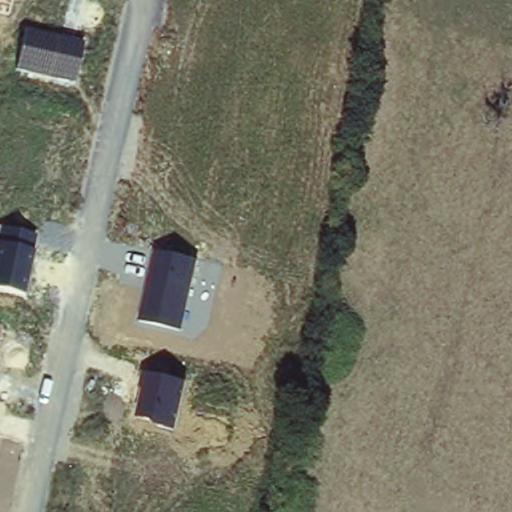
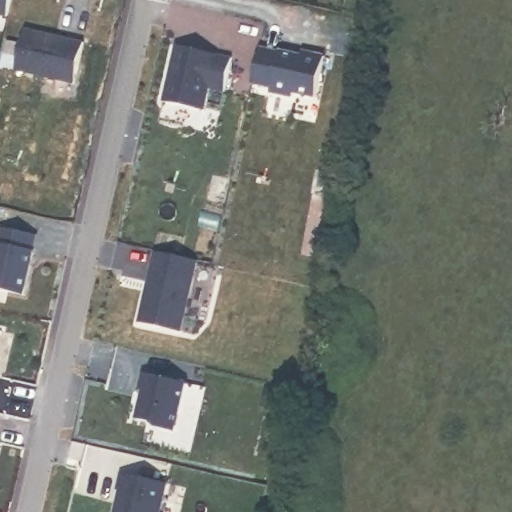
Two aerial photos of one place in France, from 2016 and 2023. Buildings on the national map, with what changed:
unchanged [(0,14),(0,0),(11,0),(9,16),(0,14)]
unchanged [(73,82),(16,69),(23,29),(83,40),(73,82)]
new [(176,44),(232,56),(224,91),(210,88),(205,109),(163,100),(176,44)]
new [(260,46),(280,51),(280,50),(302,54),(303,50),(325,55),(316,95),(294,90),(293,95),(271,90),(272,85),(252,81),(260,46)]
unchanged [(0,289),(0,229),(0,226),(37,234),(24,294),(0,289)]
unchanged [(182,332),(140,322),(154,252),(198,261),(182,332)]
unchanged [(176,428),(139,419),(148,374),(186,383),(176,428)]
new [(165,483),(160,512),(119,512),(124,489),(120,489),(122,473),(165,483)]

